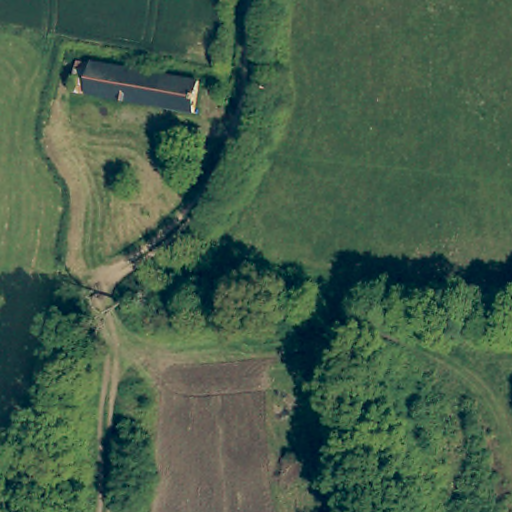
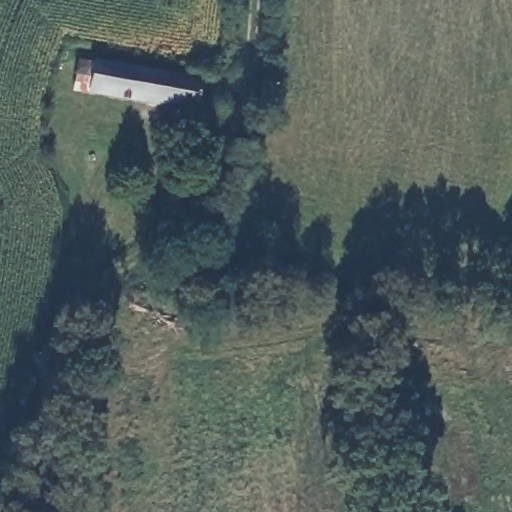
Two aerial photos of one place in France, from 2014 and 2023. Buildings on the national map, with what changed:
unchanged [(79,86),(85,55),(102,58),(103,56),(203,74),(205,74),(199,107),(79,86)]

